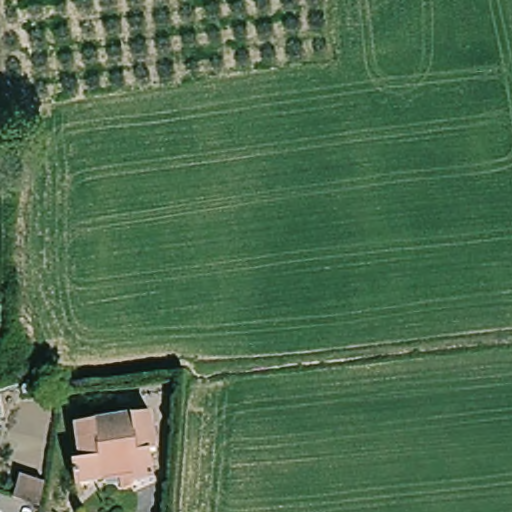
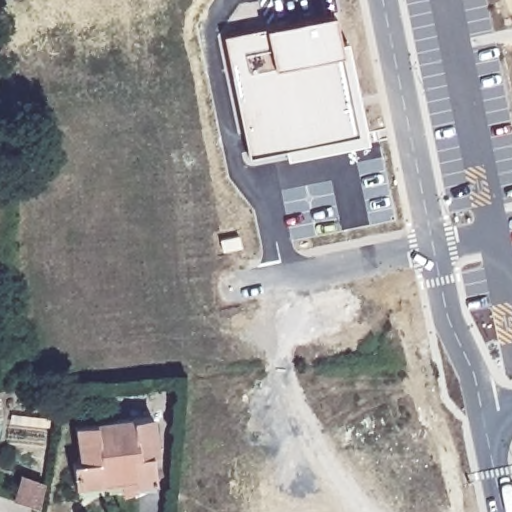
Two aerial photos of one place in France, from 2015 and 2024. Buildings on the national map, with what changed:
new [(339,51),(357,132),(249,157),(224,36),(265,26),(333,12),(339,42),(339,51)]
unchanged [(159,452),(152,453),(157,482),(138,485),(137,486),(135,489),(129,492),(124,493),(123,482),(77,487),(74,463),(80,462),(75,425),(153,414),(159,452)]
unchanged [(16,500),(21,477),(49,485),(44,505),(16,500)]

